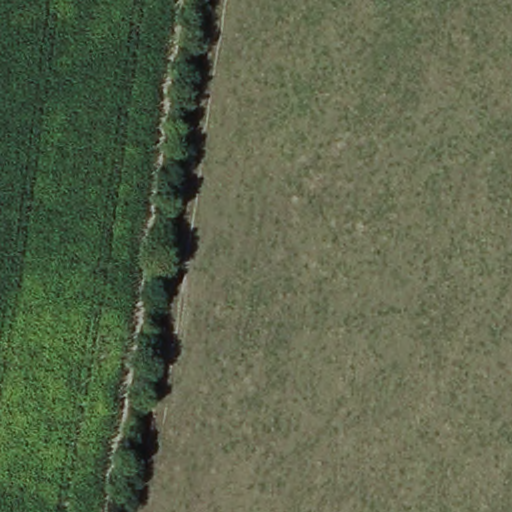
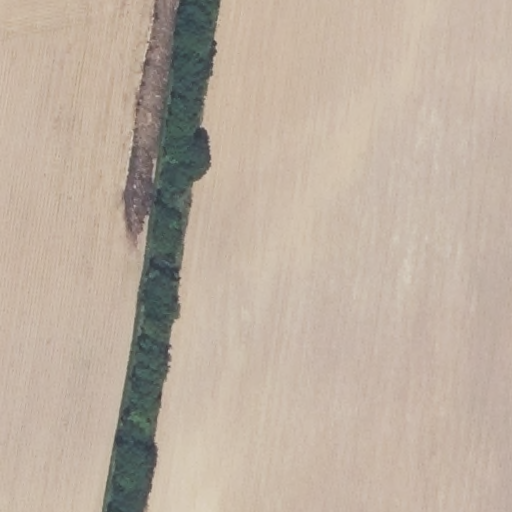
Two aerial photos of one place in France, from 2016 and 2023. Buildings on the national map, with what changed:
[]

